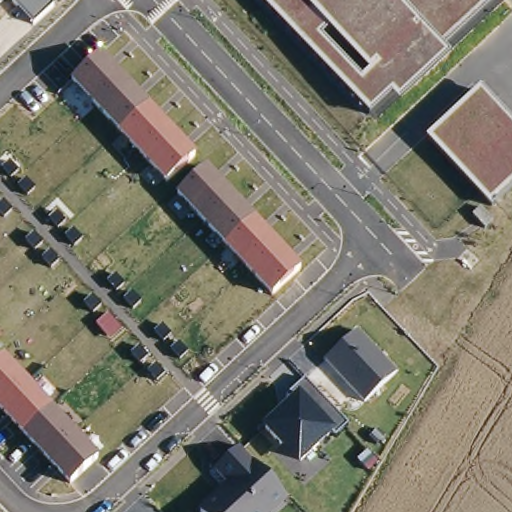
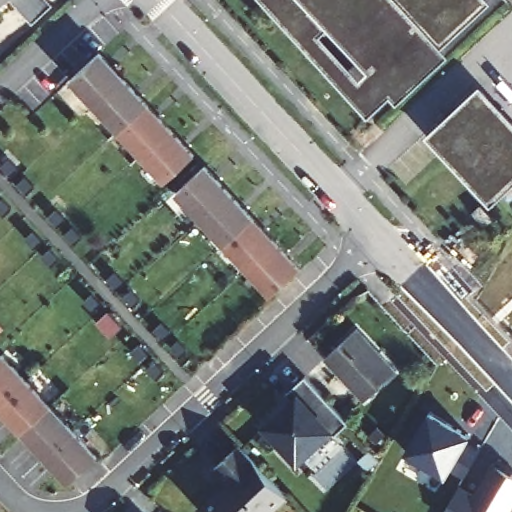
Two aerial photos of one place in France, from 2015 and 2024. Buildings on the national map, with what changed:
unchanged [(8,0),(0,7),(0,0),(8,0)]
unchanged [(32,20),(13,0),(48,0),(50,3),(32,20)]
unchanged [(445,47),(451,53),(400,101),(393,93),(370,114),(264,0),(492,0),(493,1),(445,47)]
unchanged [(197,155),(166,183),(69,81),(100,51),(197,155)]
unchanged [(512,185),(492,204),(428,134),(480,85),(512,119),(512,185)]
unchanged [(302,268),(273,295),(177,192),(206,166),(302,268)]
unchanged [(399,370),(369,399),(326,354),(357,326),(399,370)]
unchanged [(96,456),(69,482),(0,409),(0,354),(4,351),(96,456)]
unchanged [(347,425),(326,445),(322,441),(299,464),(262,424),(292,397),(287,393),(305,376),(347,425)]
new [(452,466),(447,476),(405,452),(429,411),(470,436),(484,444),(466,474),(452,466)]
unchanged [(226,482),(213,467),(240,443),(285,493),(265,512),(208,512),(200,504),(226,482)]
new [(475,493),(493,463),(512,474),(512,508),(510,512),(444,512),(460,484),(475,493)]

